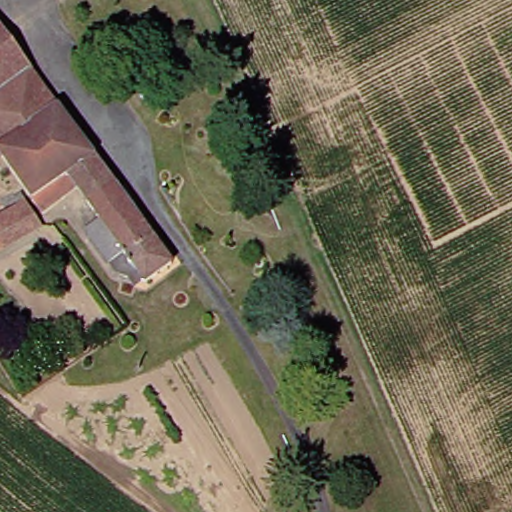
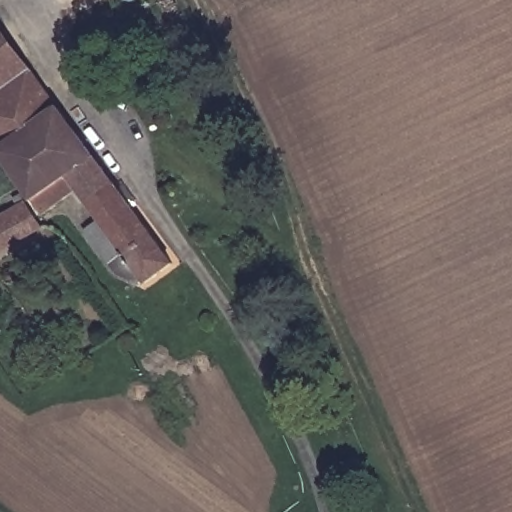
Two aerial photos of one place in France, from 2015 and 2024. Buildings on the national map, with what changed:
unchanged [(25,74),(52,111),(90,162),(126,212),(167,267),(141,287),(137,281),(130,287),(126,282),(124,282),(112,277),(105,267),(104,268),(81,237),(96,226),(71,192),(37,218),(0,164),(0,39),(25,74)]
unchanged [(0,252),(0,218),(13,210),(10,202),(15,199),(31,222),(37,231),(0,252)]

